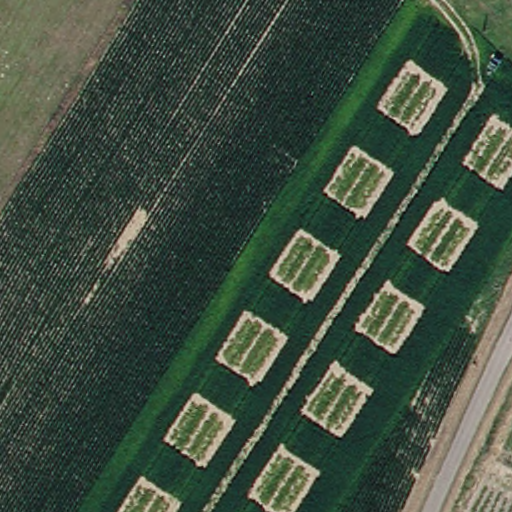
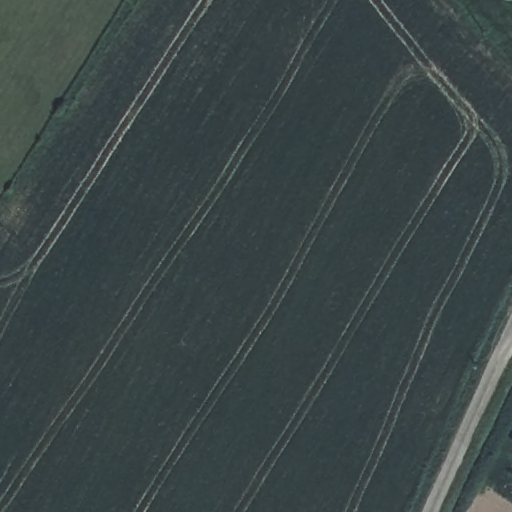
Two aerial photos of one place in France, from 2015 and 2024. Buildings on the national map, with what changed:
unchanged [(512,444),(512,449),(510,447),(512,444)]

